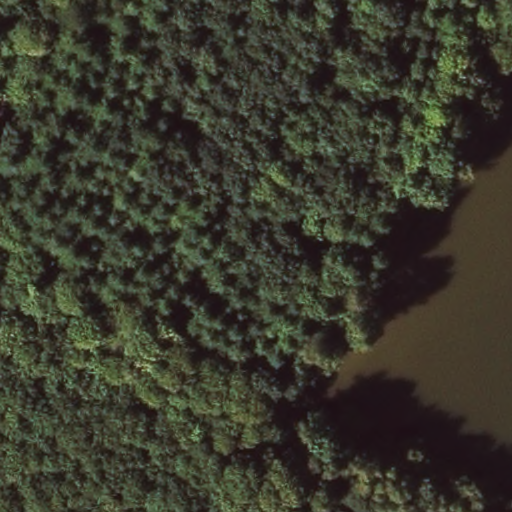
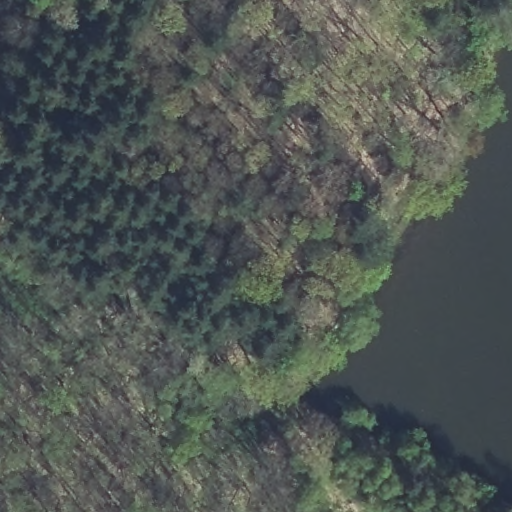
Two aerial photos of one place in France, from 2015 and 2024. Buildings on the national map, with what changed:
[]

